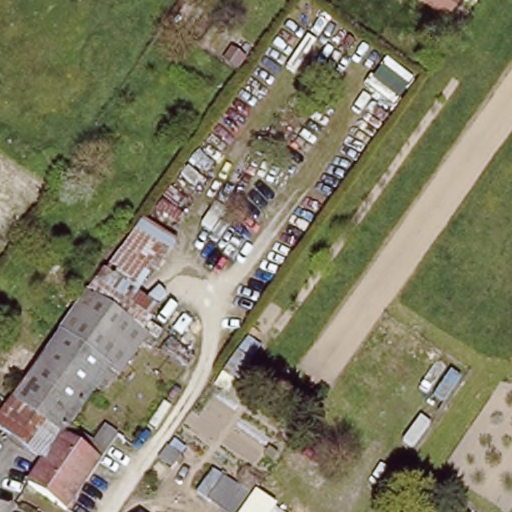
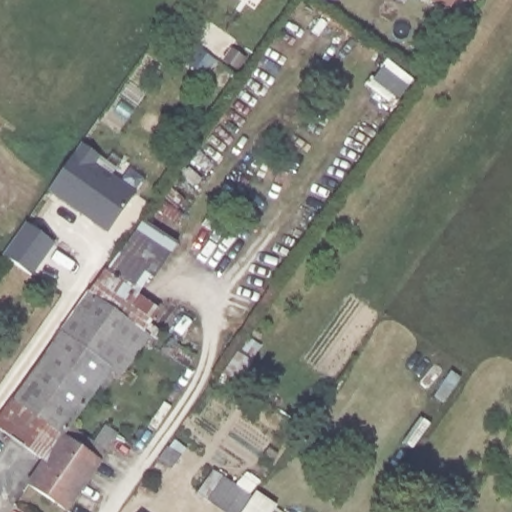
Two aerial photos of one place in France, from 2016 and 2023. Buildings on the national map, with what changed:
unchanged [(452,12),(434,0),(458,0),(452,12)]
new [(387,61),(412,81),(392,106),(367,87),(387,61)]
new [(82,142),(101,155),(94,165),(135,193),(107,233),(47,191),(82,142)]
unchanged [(179,247),(136,299),(104,276),(144,221),(179,247)]
new [(26,223),(55,244),(32,277),(3,256),(26,223)]
unchanged [(70,512),(60,512),(29,490),(45,467),(34,460),(0,436),(0,422),(85,302),(88,297),(104,276),(136,299),(152,310),(161,317),(145,337),(151,341),(147,346),(119,385),(110,377),(69,434),(92,450),(104,433),(118,443),(70,512)]
unchanged [(254,362),(239,381),(223,370),(237,350),(254,362)]
unchanged [(182,452),(173,465),(162,457),(171,443),(182,452)]
unchanged [(232,512),(212,498),(202,491),(219,469),(229,477),(253,496),(241,512),(232,512)]
unchanged [(144,512),(146,510),(149,512),(144,512)]

